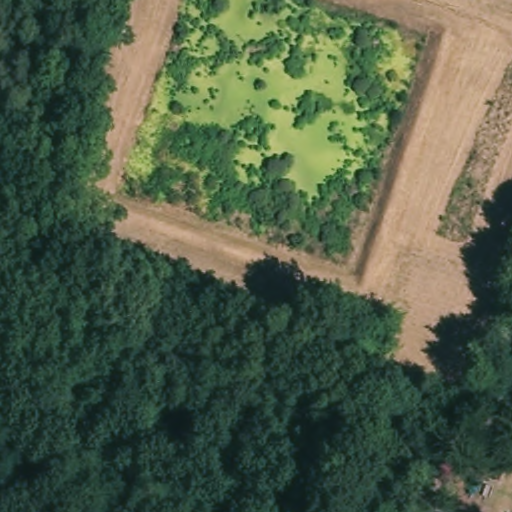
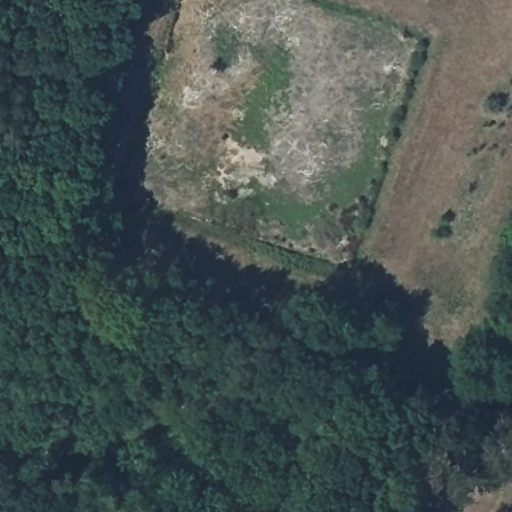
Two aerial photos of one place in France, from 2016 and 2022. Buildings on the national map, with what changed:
[]

